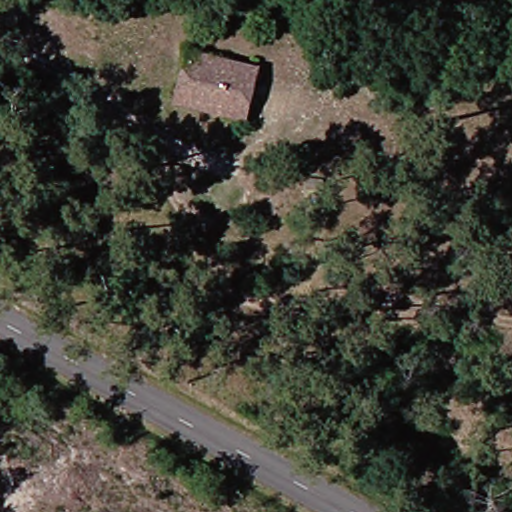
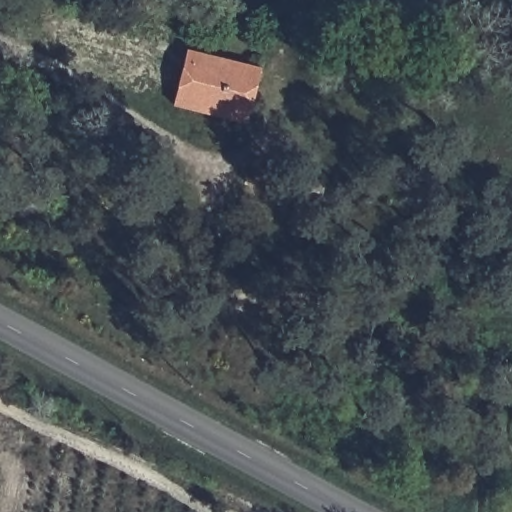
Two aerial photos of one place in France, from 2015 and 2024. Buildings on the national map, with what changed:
unchanged [(239,122),(223,117),(165,103),(182,46),(237,64),(252,67),(239,122)]

